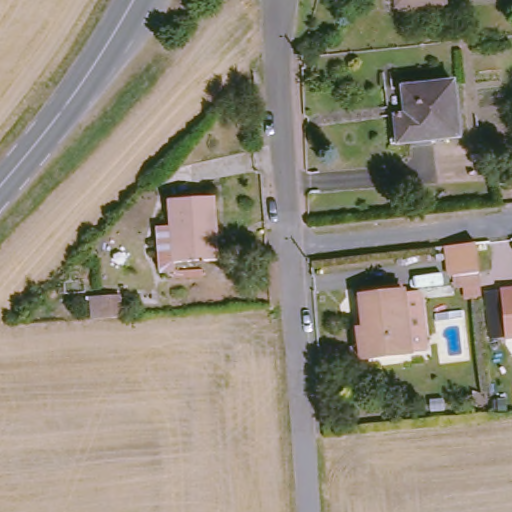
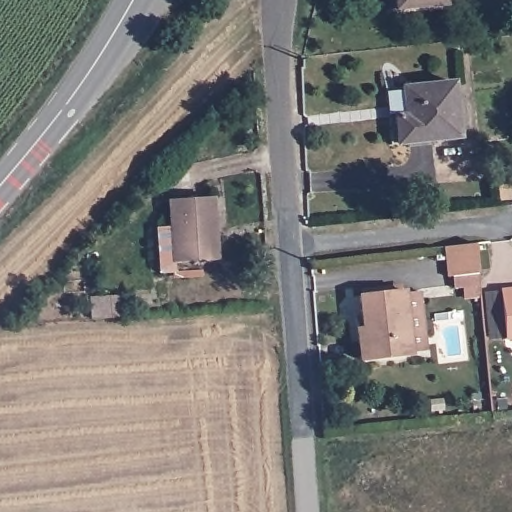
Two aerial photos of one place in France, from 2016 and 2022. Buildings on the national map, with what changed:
unchanged [(446,0),(447,4),(397,9),(396,0),(446,0)]
unchanged [(397,148),(393,114),(407,112),(407,106),(405,89),(455,84),(457,102),(462,142),(397,148)]
unchanged [(176,264),(177,274),(162,275),(158,230),(173,229),(170,202),(215,198),(220,261),(176,264)]
unchanged [(476,249),(479,278),(452,280),(450,253),(476,249)]
unchanged [(507,339),(502,290),(512,289),(512,338),(507,339)]
unchanged [(361,362),(358,329),(365,327),(362,299),(406,295),(406,297),(420,297),(425,353),(412,353),(412,356),(361,362)]

